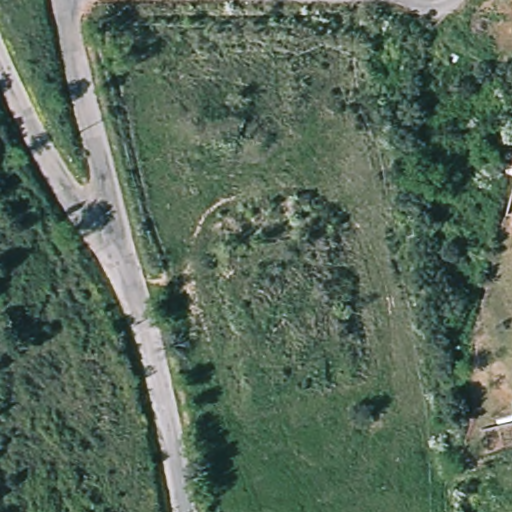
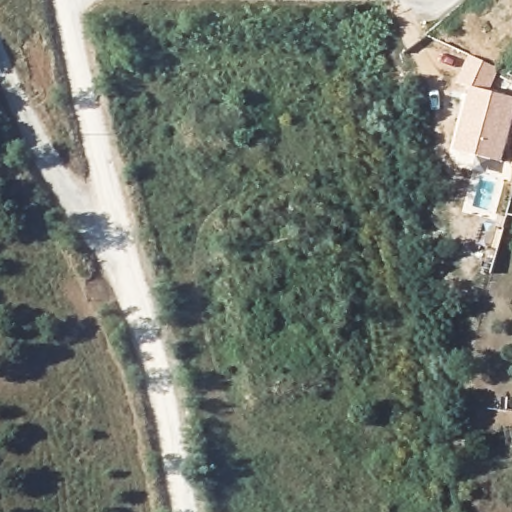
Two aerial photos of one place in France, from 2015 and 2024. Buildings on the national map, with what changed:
new [(499,68),(489,89),(512,96),(512,120),(502,161),(457,149),(472,86),(458,82),(469,54),(499,68)]

